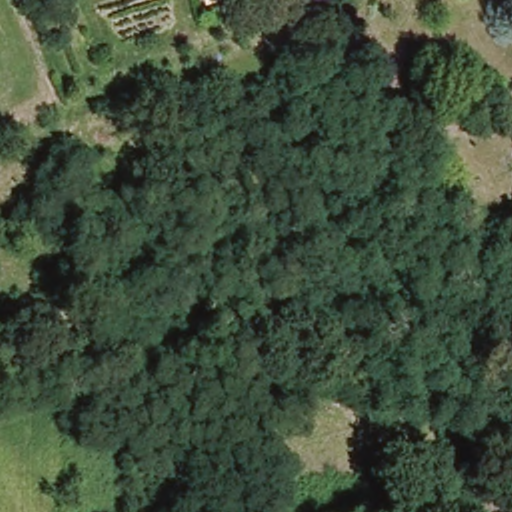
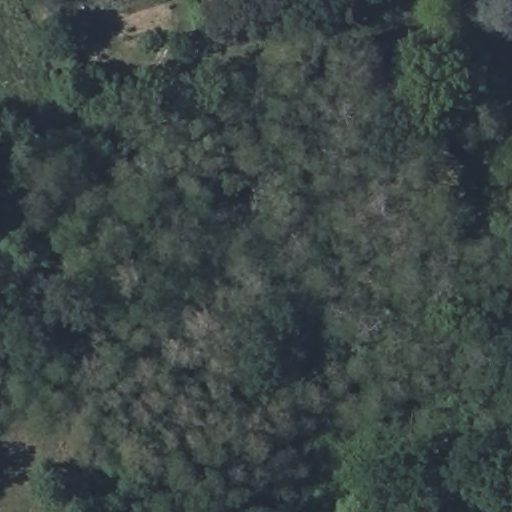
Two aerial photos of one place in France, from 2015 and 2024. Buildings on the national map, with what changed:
[]

